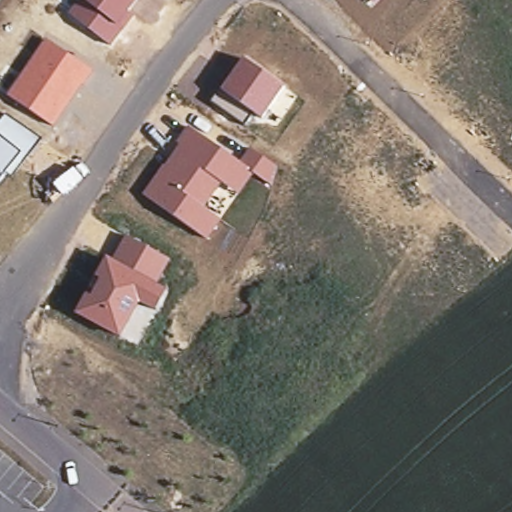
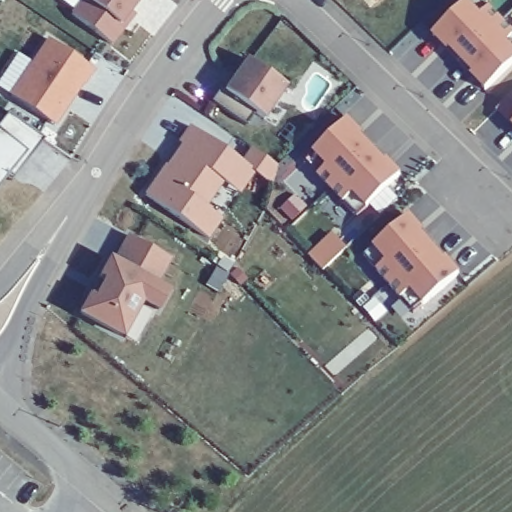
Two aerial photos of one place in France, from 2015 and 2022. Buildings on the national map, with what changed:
unchanged [(70,15),(79,0),(139,0),(130,12),(133,15),(112,45),(70,15)]
unchanged [(372,0),(382,0),(376,5),(372,0)]
new [(472,0),(484,0),(505,22),(463,61),(451,49),(449,51),(435,36),(472,0)]
new [(505,22),(512,29),(512,67),(488,91),(473,76),(475,74),(463,61),(505,22)]
unchanged [(7,97),(46,38),(94,70),(55,127),(7,97)]
unchanged [(211,102),(220,87),(222,90),(245,59),(285,86),(262,119),(252,112),(244,126),(211,102)]
unchanged [(42,140),(13,179),(7,175),(0,182),(0,122),(6,114),(42,140)]
new [(350,122),(364,137),(362,139),(374,151),(333,191),(307,163),(350,122)]
unchanged [(190,127),(240,162),(242,160),(250,147),(275,165),(271,185),(254,174),(240,195),(223,183),(205,209),(222,219),(207,240),(144,194),(190,127)]
new [(374,151),(387,164),(388,162),(402,177),(360,218),(333,191),(374,151)]
new [(412,217),(425,234),(423,235),(435,249),(392,286),(367,257),(412,217)]
unchanged [(87,293),(93,296),(102,280),(97,277),(107,257),(113,261),(126,236),(170,258),(156,284),(168,290),(157,312),(140,305),(122,339),(77,315),(87,293)]
new [(435,249),(446,262),(448,260),(462,276),(417,315),(392,286),(435,249)]

